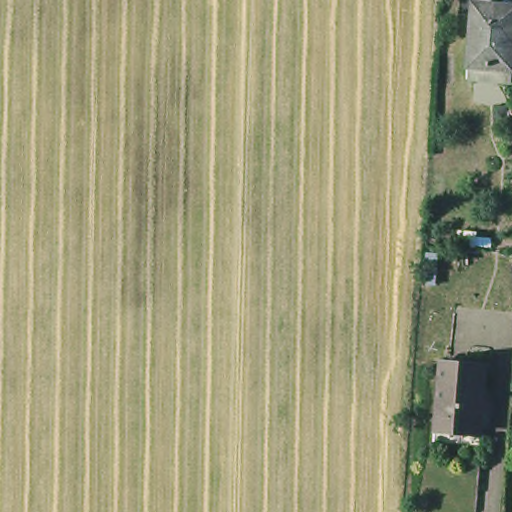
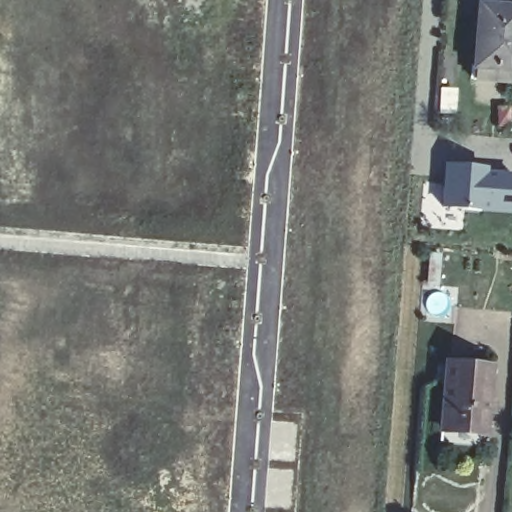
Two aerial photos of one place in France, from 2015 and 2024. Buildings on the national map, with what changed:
unchanged [(474,61),(478,0),(495,0),(512,2),(512,78),(474,74),(474,61)]
new [(438,86),(459,87),(457,115),(437,114),(438,86)]
new [(488,173),(512,174),(512,216),(442,210),(442,165),(489,167),(488,173)]
new [(427,251),(442,252),(439,288),(425,287),(427,251)]
unchanged [(472,440),(440,438),(441,422),(445,358),(479,360),(490,361),(485,426),(484,441),(472,440)]

